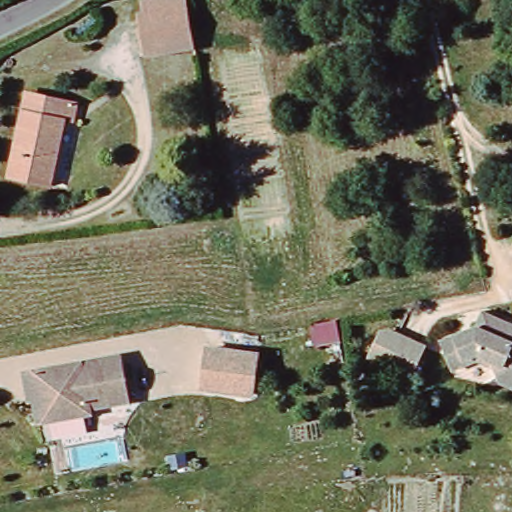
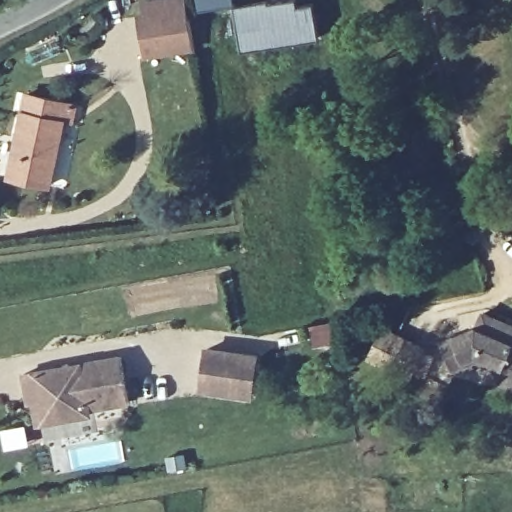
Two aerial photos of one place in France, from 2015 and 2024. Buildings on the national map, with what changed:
unchanged [(146,36),(141,12),(146,11),(144,0),(147,0),(180,0),(181,6),(192,4),(200,45),(169,50),(148,54),(146,36)]
new [(234,5),(198,11),(196,0),(233,0),(234,5)]
new [(276,0),(296,0),(297,4),(313,2),(320,38),(240,51),(234,5),(276,0)]
unchanged [(79,15),(91,8),(97,18),(86,25),(79,15)]
unchanged [(73,106),(54,188),(18,179),(38,97),(73,106)]
unchanged [(471,370),(458,375),(447,347),(460,342),(483,332),(490,318),(512,328),(512,390),(505,387),(497,365),(484,360),(469,365),(471,370)]
new [(336,320),(340,340),(315,345),(312,325),(336,320)]
unchanged [(414,389),(370,369),(380,344),(390,342),(427,359),(414,389)]
unchanged [(201,393),(206,355),(255,359),(251,399),(201,393)]
unchanged [(128,405),(87,413),(87,418),(41,426),(37,401),(28,402),(24,379),(38,376),(120,361),(128,405)]

